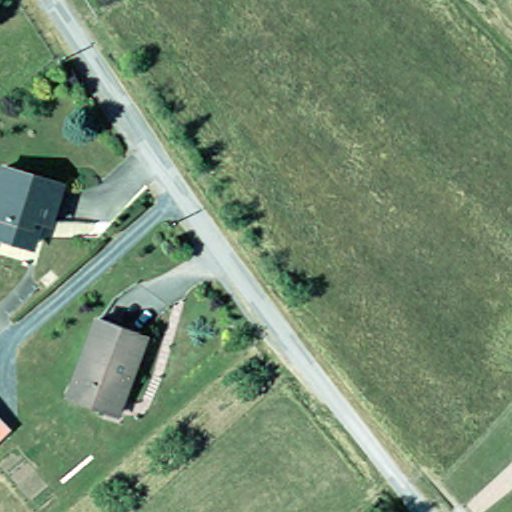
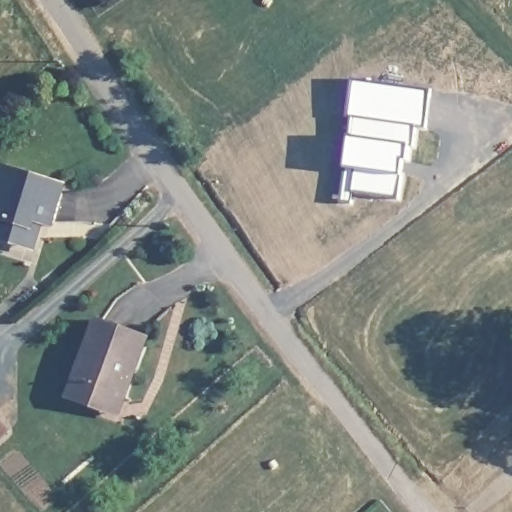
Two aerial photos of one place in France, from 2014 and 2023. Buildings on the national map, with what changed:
new [(430,89),(425,127),(415,125),(413,145),(409,144),(407,159),(403,158),(401,174),(398,197),(353,191),(351,204),(341,202),(345,167),(349,135),(351,136),(353,117),(346,116),(351,79),(430,89)]
unchanged [(0,231),(0,163),(0,161),(58,179),(46,217),(38,215),(29,239),(24,237),(0,231)]
unchanged [(100,408),(67,397),(96,316),(146,332),(123,395),(116,413),(100,408)]
new [(0,446),(0,423),(12,437),(0,446)]

